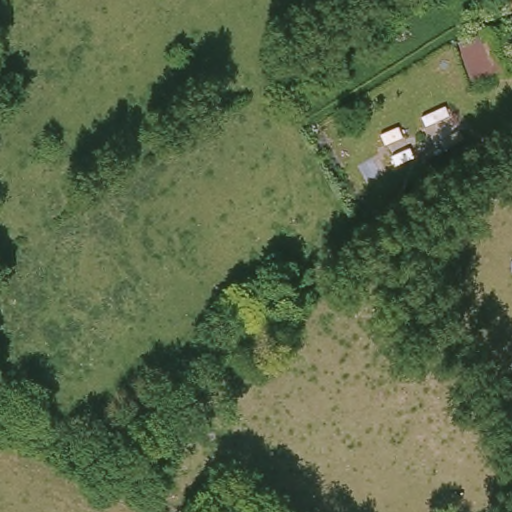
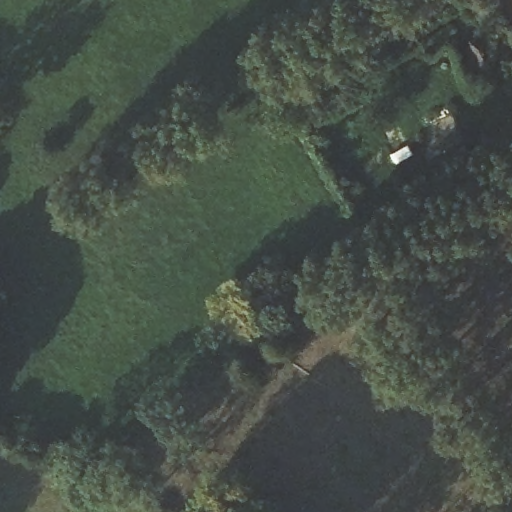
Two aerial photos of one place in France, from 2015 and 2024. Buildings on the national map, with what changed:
unchanged [(457,50),(450,36),(468,26),(465,15),(492,7),(502,29),(512,56),(512,77),(475,91),(457,50)]

